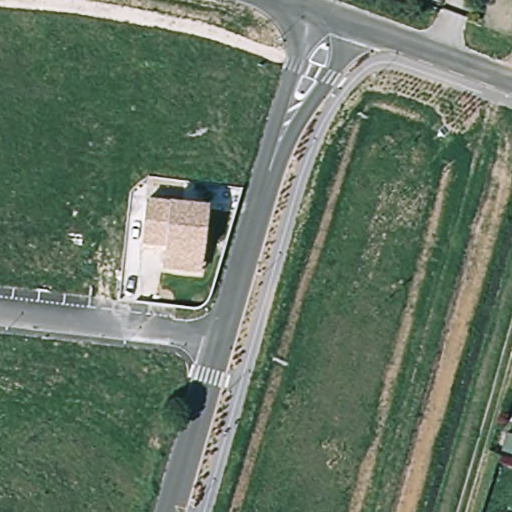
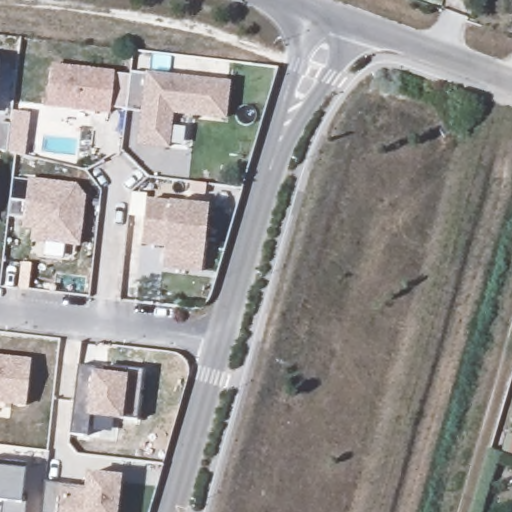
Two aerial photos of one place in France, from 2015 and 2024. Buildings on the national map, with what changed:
new [(52,65),(128,75),(129,71),(229,82),(224,120),(171,115),(167,150),(136,146),(140,112),(124,111),(125,107),(109,105),(108,115),(45,108),(52,65)]
new [(12,110),(32,115),(26,140),(22,156),(7,153),(9,136),(12,110)]
new [(24,204),(28,179),(75,185),(86,199),(79,245),(30,242),(31,230),(22,229),(22,220),(7,218),(9,200),(24,204)]
unchanged [(146,200),(171,202),(207,205),(200,272),(163,268),(164,248),(142,246),(146,200)]
new [(31,361),(26,406),(0,403),(0,357),(31,361)]
new [(95,368),(94,375),(99,375),(101,366),(143,372),(137,421),(89,416),(87,437),(68,435),(76,367),(95,368)]
new [(25,464),(25,472),(22,498),(27,497),(26,512),(1,512),(3,502),(0,502),(0,461),(25,464)]
new [(86,472),(120,477),(116,512),(41,512),(45,483),(83,490),(86,472)]

